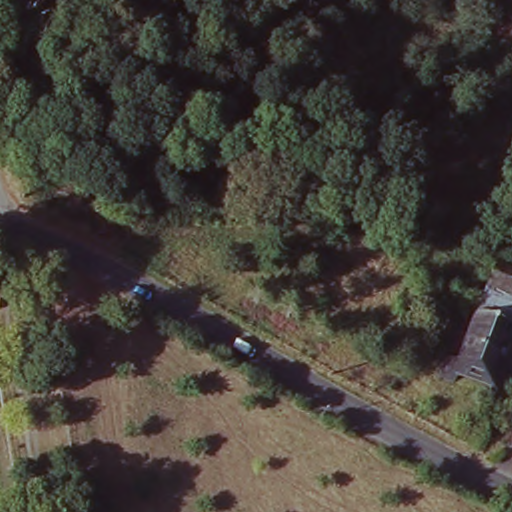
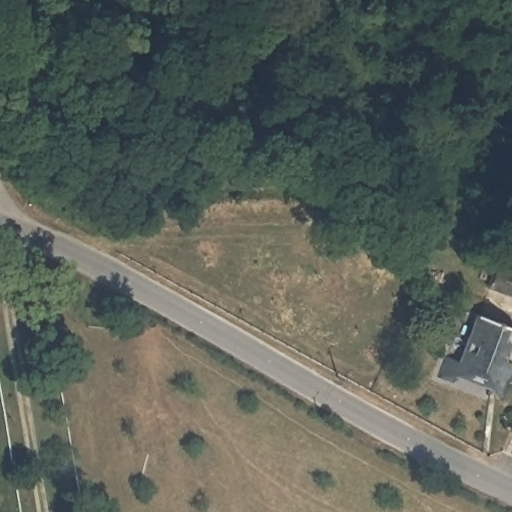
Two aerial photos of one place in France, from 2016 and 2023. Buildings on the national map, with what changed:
unchanged [(485,260),(512,268),(512,294),(479,284),(485,260)]
unchanged [(512,294),(512,322),(472,312),(479,284),(512,294)]
unchanged [(445,355),(458,358),(472,312),(512,322),(512,330),(505,358),(512,360),(512,373),(507,397),(489,391),(457,382),(441,377),(445,355)]

